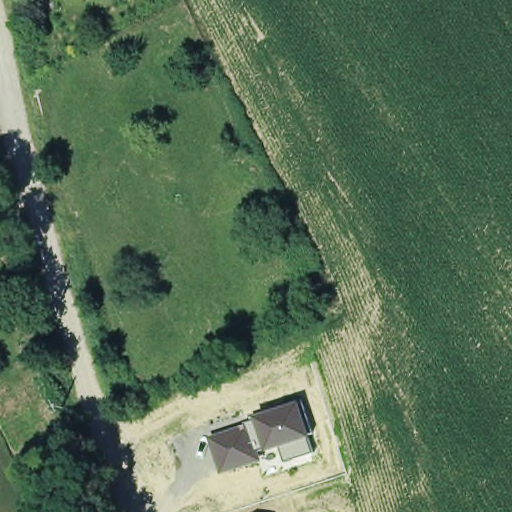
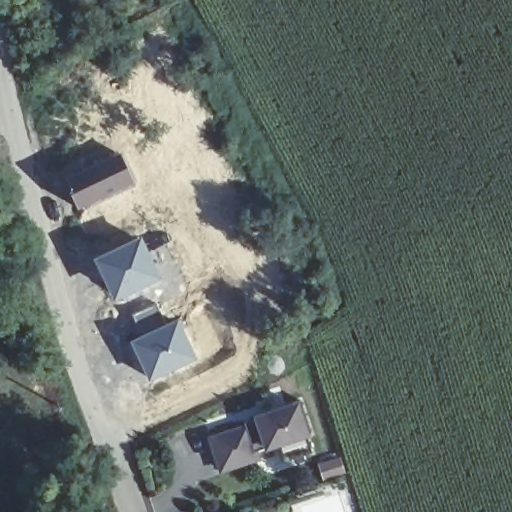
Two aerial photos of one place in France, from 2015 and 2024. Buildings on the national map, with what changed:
new [(120,154),(132,183),(77,208),(65,178),(120,154)]
new [(141,235),(162,279),(114,301),(92,258),(141,235)]
new [(177,317),(197,358),(148,381),(128,340),(177,317)]
unchanged [(283,461),(279,447),(265,451),(264,447),(256,450),(260,459),(219,472),(207,437),(249,421),(248,417),(258,414),(298,401),(309,437),(306,438),(311,453),(283,461)]

